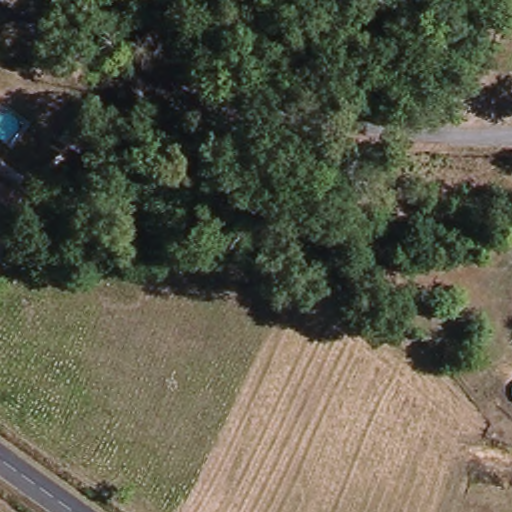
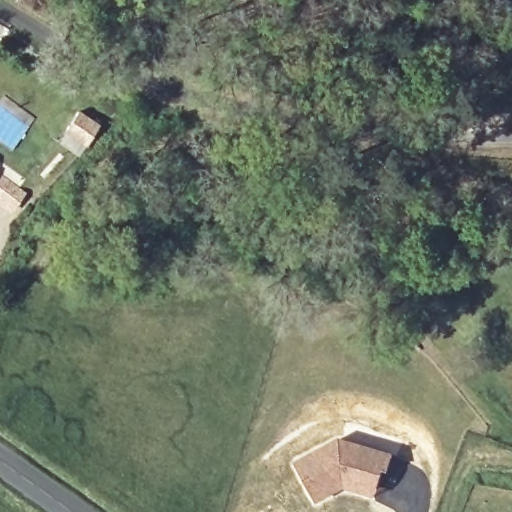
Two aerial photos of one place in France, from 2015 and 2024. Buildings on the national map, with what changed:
new [(77,113),(97,125),(87,143),(65,130),(77,113)]
unchanged [(14,212),(0,202),(0,177),(25,193),(14,212)]
new [(388,473),(383,471),(374,496),(344,487),(317,503),(297,466),(341,441),(392,457),(388,473)]

